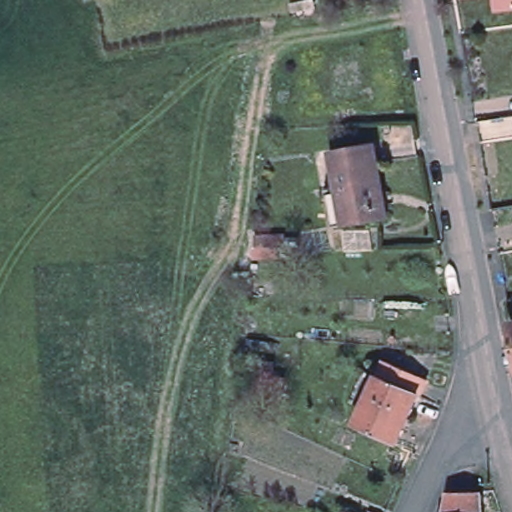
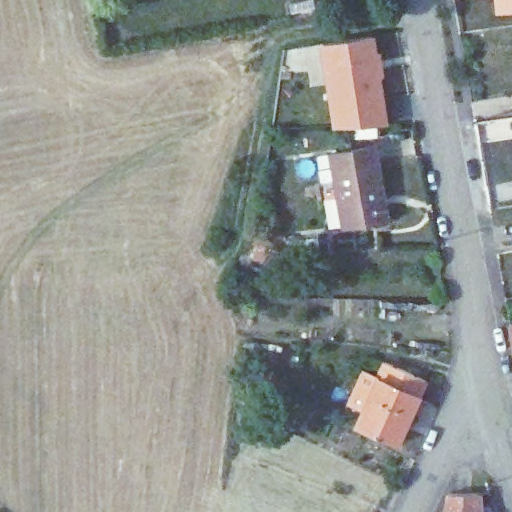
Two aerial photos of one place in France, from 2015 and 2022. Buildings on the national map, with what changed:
unchanged [(501,12),(499,0),(512,0),(512,10),(501,12)]
new [(373,55),(378,54),(381,74),(376,75),(385,124),(334,126),(333,101),(329,83),(309,86),(304,46),(323,43),(370,35),(373,55)]
unchanged [(390,217),(384,218),(351,225),(348,226),(336,228),(329,193),(328,188),(340,185),(334,153),(377,144),(386,194),(387,197),(390,217)]
unchanged [(285,235),(286,246),(261,246),(255,247),(256,237),(285,235)]
unchanged [(512,325),(512,336),(510,326),(512,325)]
unchanged [(370,379),(374,370),(384,374),(388,366),(429,385),(423,400),(381,382),(366,415),(353,409),(366,378),(370,379)]
unchanged [(381,382),(423,400),(402,448),(360,430),(366,415),(381,382)]
unchanged [(479,493),(480,512),(445,512),(449,493),(479,493)]

